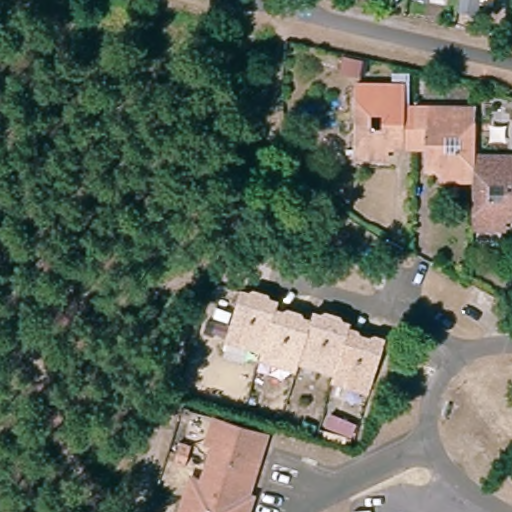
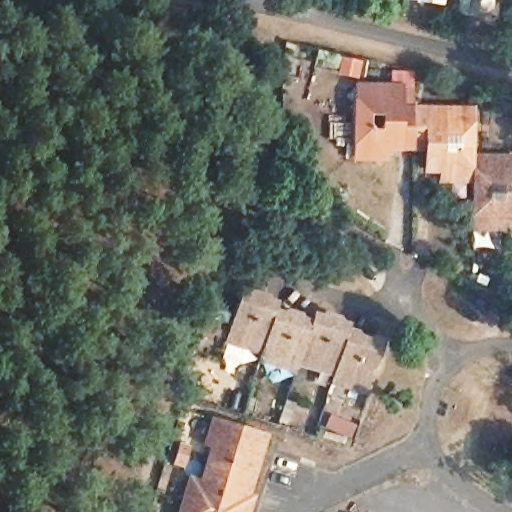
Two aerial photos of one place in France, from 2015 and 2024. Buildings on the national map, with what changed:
unchanged [(395,150),(379,149),(379,158),(344,157),(346,85),(396,86),(396,104),(395,150)]
unchanged [(463,184),(434,183),(433,170),(414,169),(414,151),(395,150),(396,104),(464,106),(463,153),(463,184)]
unchanged [(497,222),(498,235),(462,234),(463,184),(463,153),(512,155),(512,223),(497,222)]
unchanged [(259,351),(222,339),(240,285),(276,297),(274,303),(259,351)]
unchanged [(297,362),(294,370),(256,357),(259,351),(274,303),(312,316),(297,362)]
unchanged [(333,373),(297,362),(312,316),(315,307),(351,319),(348,326),(333,373)]
unchanged [(380,336),(363,390),(331,379),(333,373),(348,326),(380,336)]
unchanged [(181,503),(189,478),(204,483),(217,441),(209,439),(215,418),(223,421),(264,433),(245,495),(253,497),(248,512),(178,512),(181,503)]

